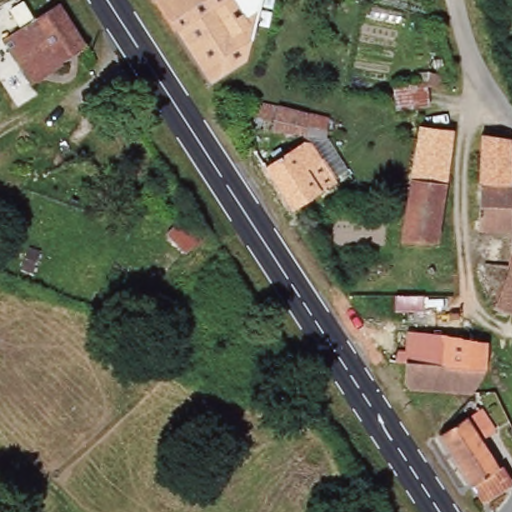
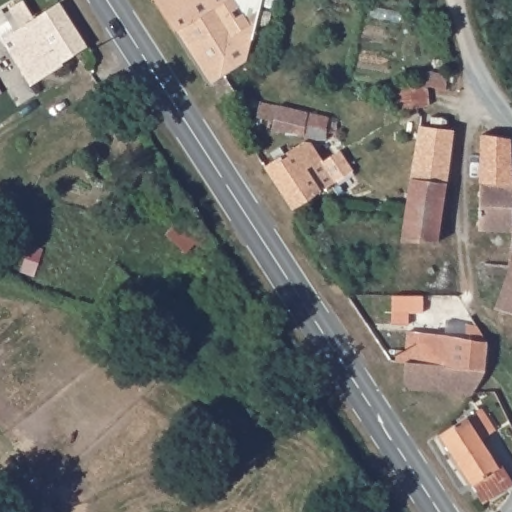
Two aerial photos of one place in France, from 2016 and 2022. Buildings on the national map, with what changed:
unchanged [(156,0),(265,0),(265,10),(246,21),(231,1),(219,7),(182,31),(156,0)]
unchanged [(91,47),(34,86),(5,45),(59,10),(64,6),(91,47)]
unchanged [(219,7),(234,30),(246,21),(265,10),(252,61),(217,85),(182,31),(219,7)]
unchanged [(432,106),(400,110),(396,86),(430,82),(433,71),(450,77),(451,85),(449,92),(435,86),(431,90),(432,106)]
unchanged [(338,133),(332,135),(330,142),(308,138),(304,134),(276,128),(277,122),(260,119),(264,102),(340,121),(341,125),(338,133)]
unchanged [(485,124),(502,126),(502,135),(512,141),(512,182),(483,183),(485,124)]
unchanged [(449,184),(430,182),(413,181),(422,126),(456,130),(449,184)]
unchanged [(340,184),(297,211),(268,166),(307,142),(316,145),(340,184)]
unchanged [(441,242),(403,242),(408,214),(413,181),(430,182),(449,184),(441,242)]
unchanged [(490,231),(481,230),(482,209),(483,183),(512,182),(512,268),(489,266),(490,231)]
unchanged [(512,274),(512,311),(500,307),(512,274)]
unchanged [(138,322),(124,316),(130,304),(144,310),(138,322)]
unchanged [(491,347),(489,371),(410,364),(399,363),(400,352),(409,352),(411,332),(490,343),(491,347)]
unchanged [(476,391),(475,394),(412,392),(406,383),(410,364),(489,371),(485,380),(476,391)]
unchanged [(512,484),(485,503),(441,436),(468,421),(467,413),(469,406),(472,401),(478,401),(499,432),(484,440),(512,482),(512,484)]

